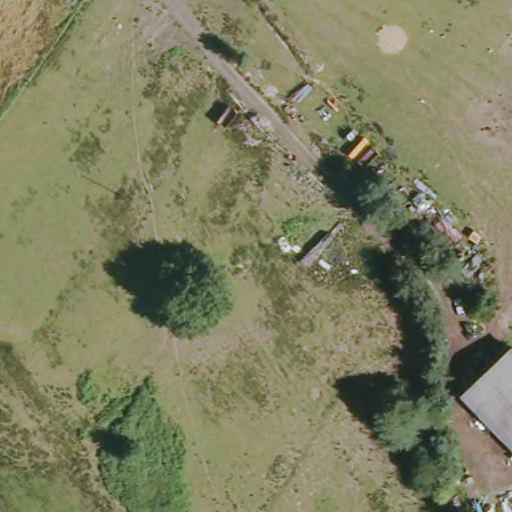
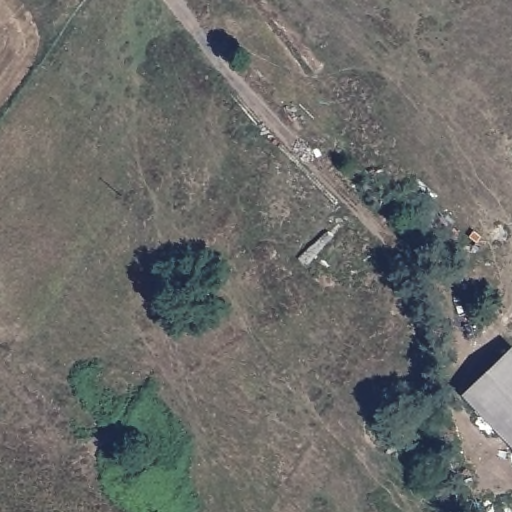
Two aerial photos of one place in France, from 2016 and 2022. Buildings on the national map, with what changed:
unchanged [(470,394),(512,355),(512,438),(470,394)]

